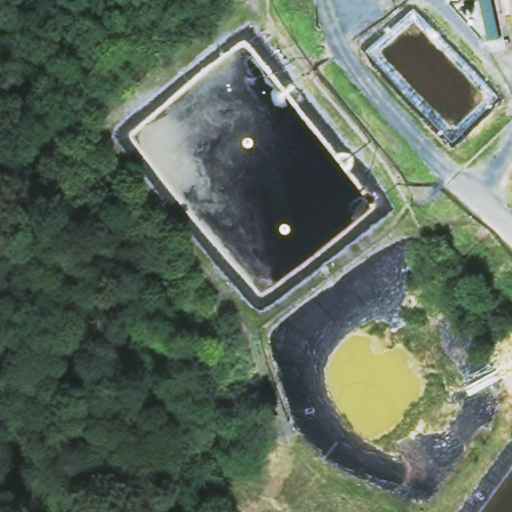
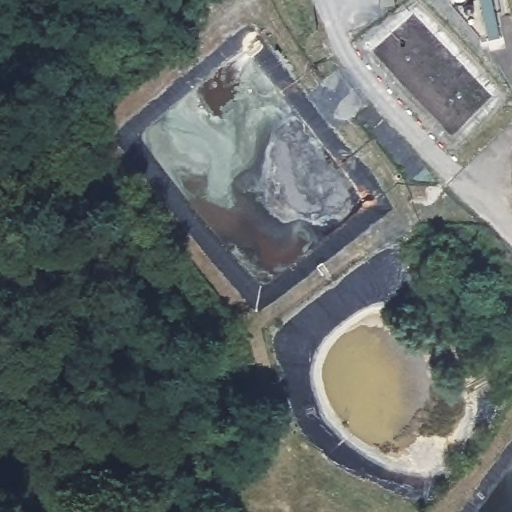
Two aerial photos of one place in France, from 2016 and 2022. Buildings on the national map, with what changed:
unchanged [(396,3),(380,5),(379,0),(396,0),(396,3)]

